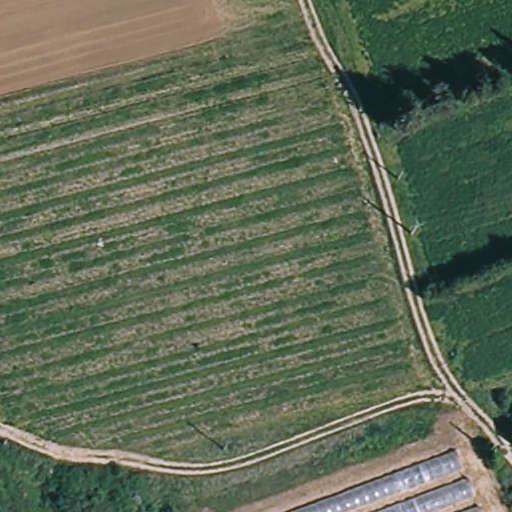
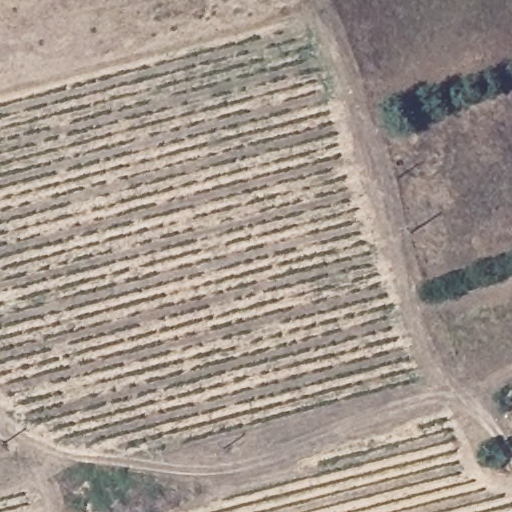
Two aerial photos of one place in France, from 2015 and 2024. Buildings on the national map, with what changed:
demolished [(458,443),(483,512),(277,512),(458,443)]

